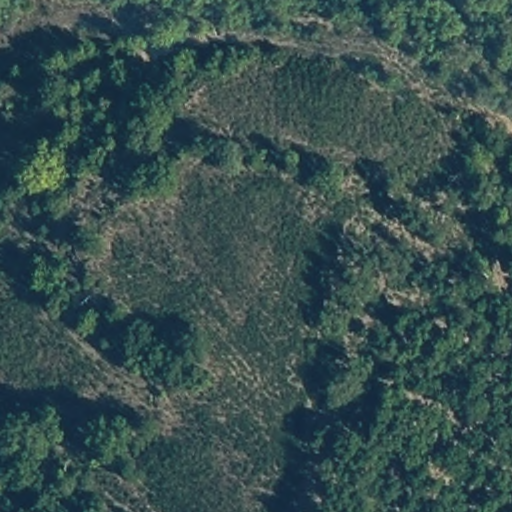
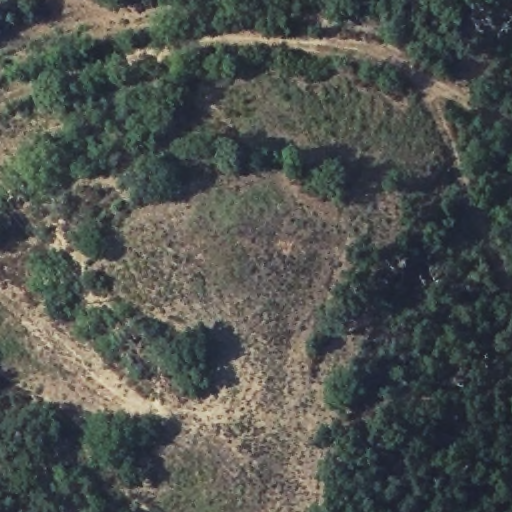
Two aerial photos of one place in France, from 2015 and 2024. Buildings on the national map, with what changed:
[]

